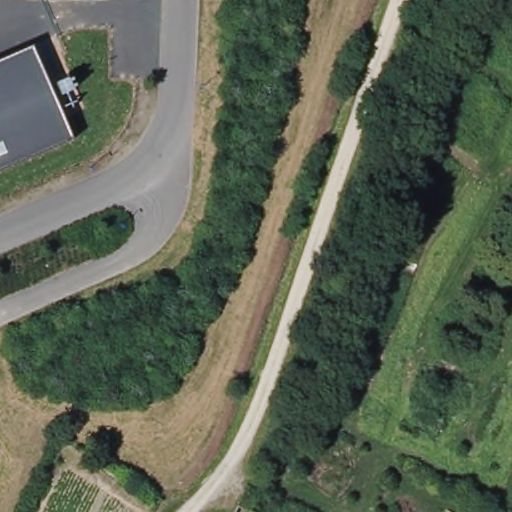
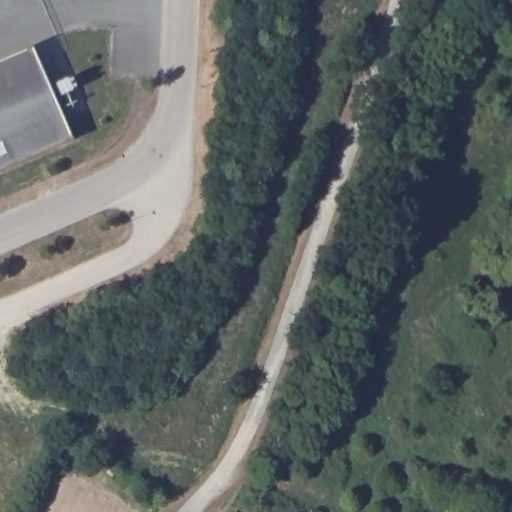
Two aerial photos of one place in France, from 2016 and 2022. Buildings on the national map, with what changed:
unchanged [(31,47),(72,138),(0,169),(0,61),(31,47)]

